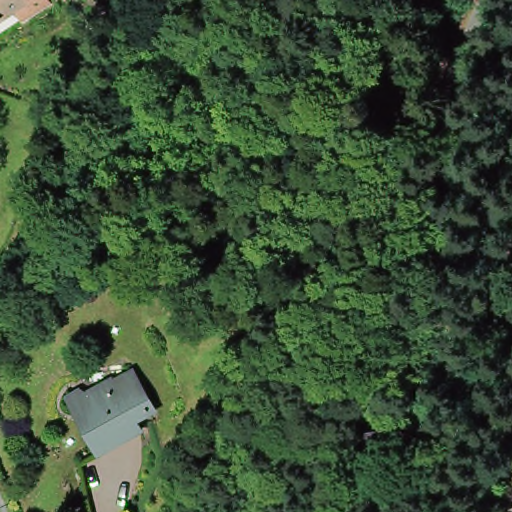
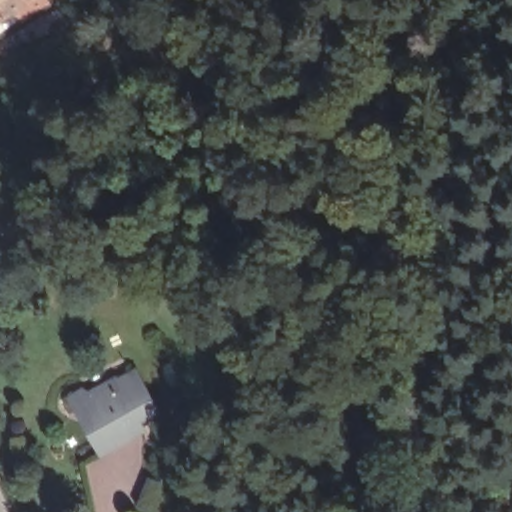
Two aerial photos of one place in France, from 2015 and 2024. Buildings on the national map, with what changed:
unchanged [(0,24),(0,0),(47,0),(49,3),(35,13),(23,21),(16,11),(0,24)]
unchanged [(113,385),(132,373),(153,407),(135,419),(140,428),(107,451),(86,416),(80,421),(70,406),(112,382),(113,385)]
unchanged [(400,462),(367,466),(363,448),(360,430),(392,425),(396,443),(400,462)]

